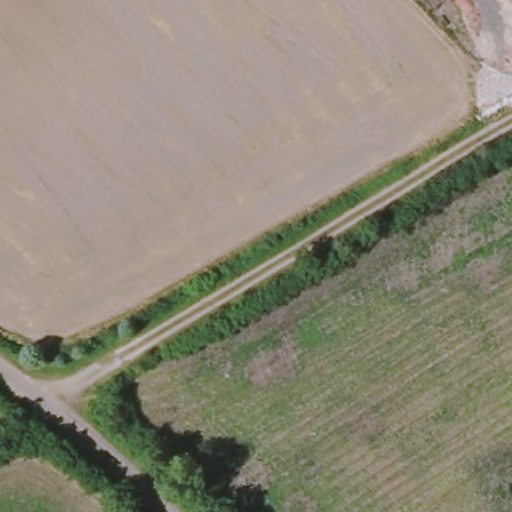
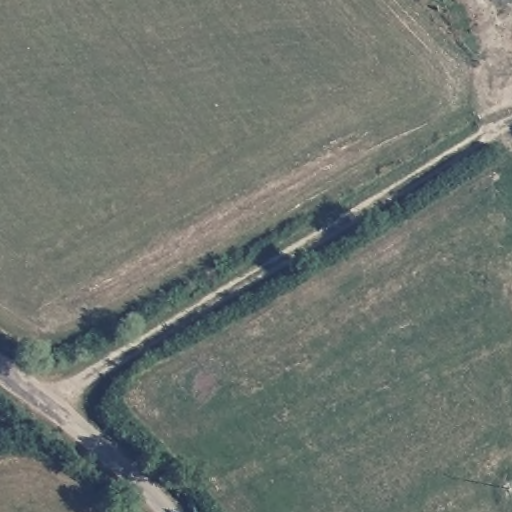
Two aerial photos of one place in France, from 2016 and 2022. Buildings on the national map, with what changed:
[]

